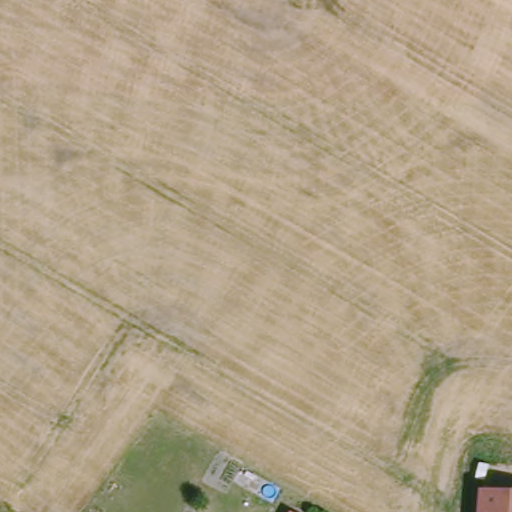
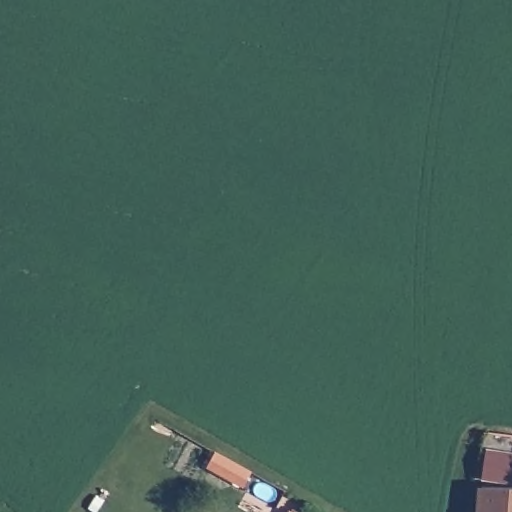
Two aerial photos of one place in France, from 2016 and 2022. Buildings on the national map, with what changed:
unchanged [(512,484),(512,512),(481,512),(482,483),(512,484)]

